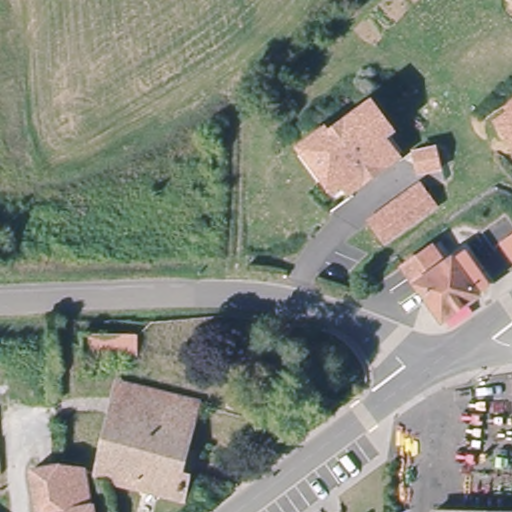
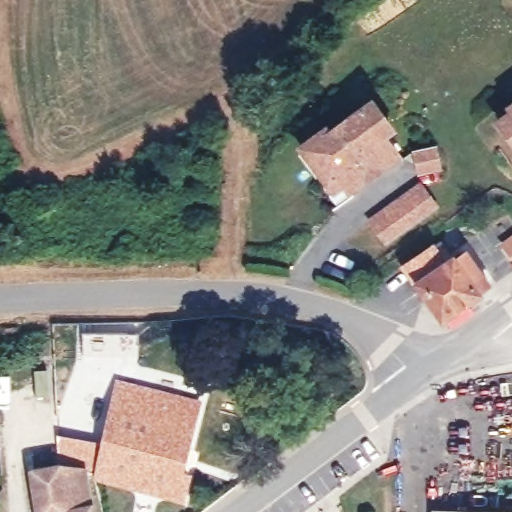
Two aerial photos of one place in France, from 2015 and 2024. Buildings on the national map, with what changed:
unchanged [(324,175),(306,153),(365,108),(374,102),(396,131),(387,137),(401,156),(381,171),(371,179),(353,192),(347,185),(337,193),(324,175)]
unchanged [(500,119),(512,110),(512,137),(500,119)]
unchanged [(391,244),(375,221),(424,186),(441,208),(391,244)]
unchanged [(508,241),(512,238),(512,246),(508,241)]
unchanged [(476,291),(478,293),(442,320),(402,267),(430,246),(437,240),(451,259),(463,250),(488,283),(476,291)]
unchanged [(195,428),(190,470),(198,472),(197,495),(96,476),(112,376),(199,393),(195,428)]
unchanged [(52,464),(80,469),(90,512),(41,512),(29,464),(43,462),(52,464)]
unchanged [(511,508),(512,512),(430,512),(504,510),(511,508)]

